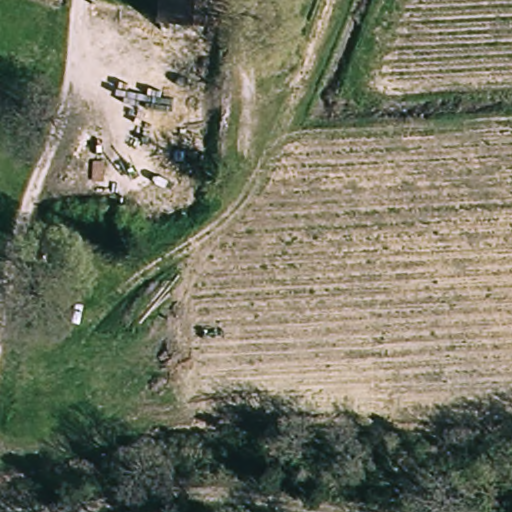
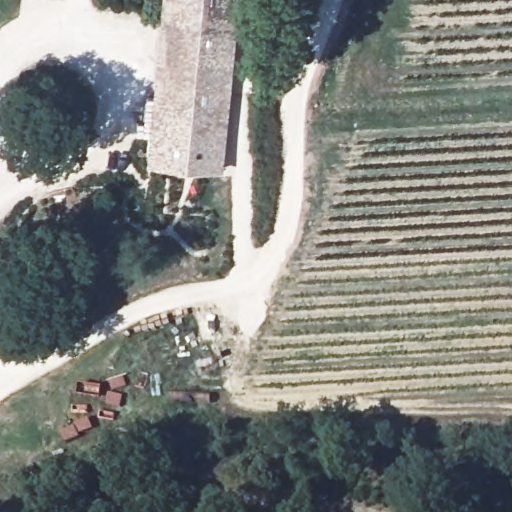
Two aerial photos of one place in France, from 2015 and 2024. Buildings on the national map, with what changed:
unchanged [(162,20),(163,0),(241,0),(238,28),(162,20)]
new [(238,28),(221,168),(144,162),(162,20),(238,28)]

